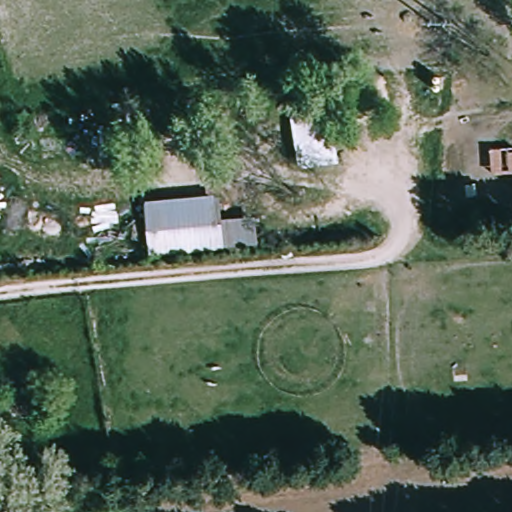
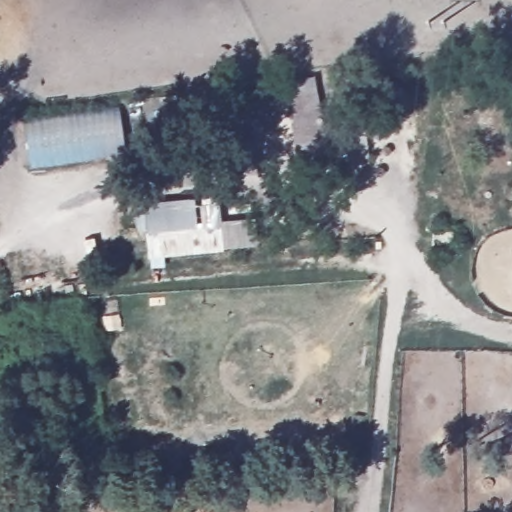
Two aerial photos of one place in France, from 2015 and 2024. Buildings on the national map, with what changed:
new [(121,106),(129,151),(28,166),(21,121),(121,106)]
unchanged [(340,162),(301,169),(292,116),(331,110),(340,162)]
unchanged [(260,244),(150,257),(145,201),(220,193),(223,219),(257,215),(260,244)]

